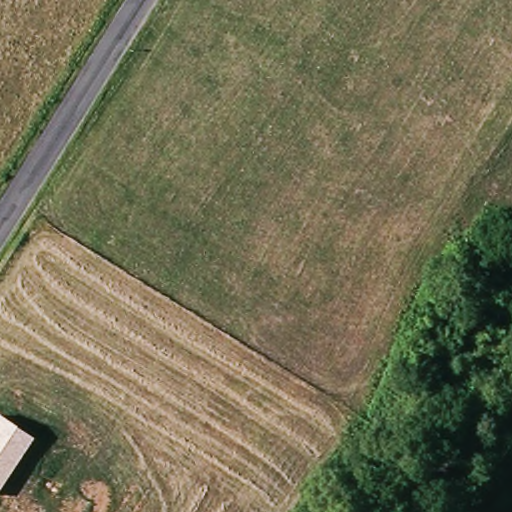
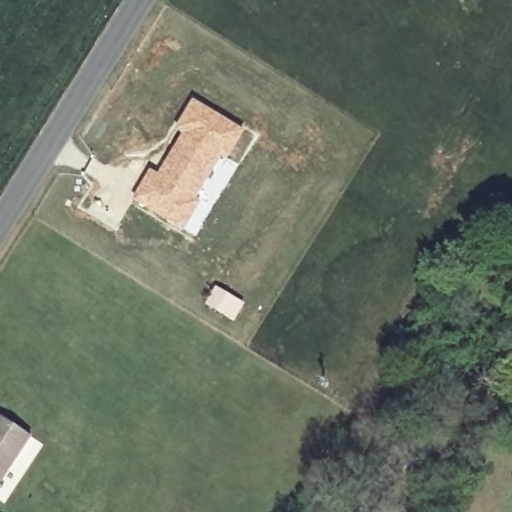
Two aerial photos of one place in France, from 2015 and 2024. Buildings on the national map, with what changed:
new [(150,167),(157,171),(181,133),(174,128),(192,98),(247,132),(230,159),(225,156),(199,199),(185,229),(130,199),(150,167)]
new [(216,284),(245,302),(233,321),(205,303),(216,284)]
unchanged [(0,486),(0,415),(33,437),(0,486)]

